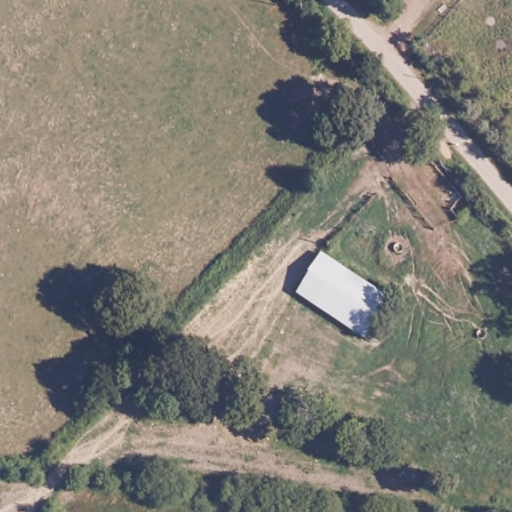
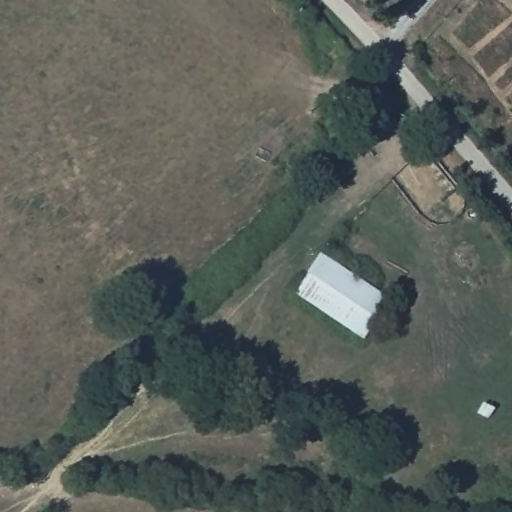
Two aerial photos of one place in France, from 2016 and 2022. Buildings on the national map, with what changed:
unchanged [(390,292),(361,335),(293,288),(322,245),(390,292)]

